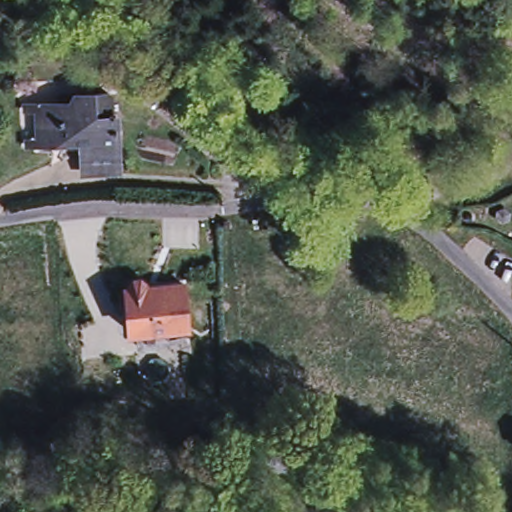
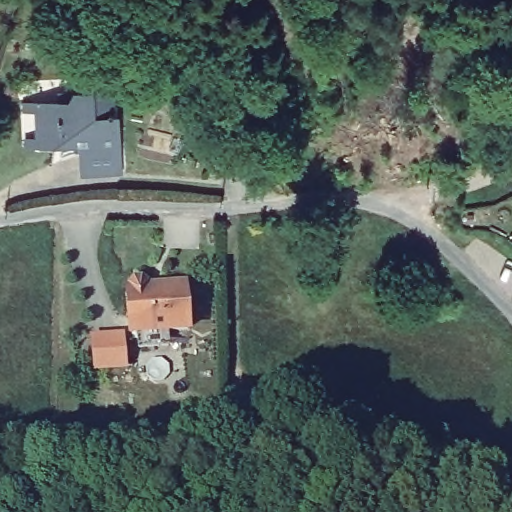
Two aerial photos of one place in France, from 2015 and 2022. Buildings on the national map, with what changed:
unchanged [(114,109),(117,110),(117,112),(119,112),(123,171),(90,173),(87,142),(95,142),(94,132),(77,132),(77,141),(42,142),(30,143),(30,106),(40,106),(60,104),(60,97),(78,96),(112,93),(114,109)]
unchanged [(138,348),(137,332),(130,333),(128,289),(130,288),(130,286),(135,281),(143,281),(147,285),(147,287),(150,287),(150,290),(163,289),(162,286),(186,285),(189,330),(169,331),(170,346),(138,348)]
new [(122,335),(124,367),(94,368),(92,337),(122,335)]

